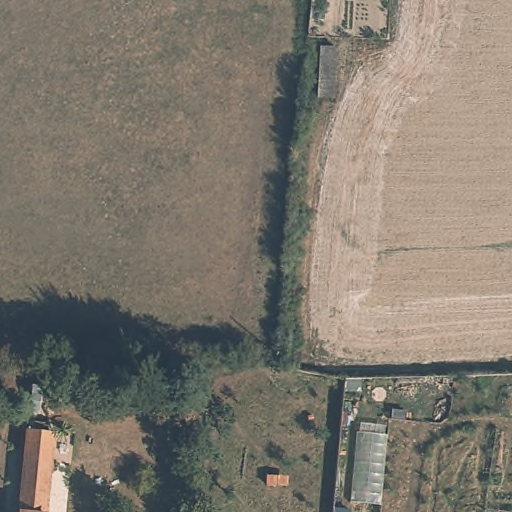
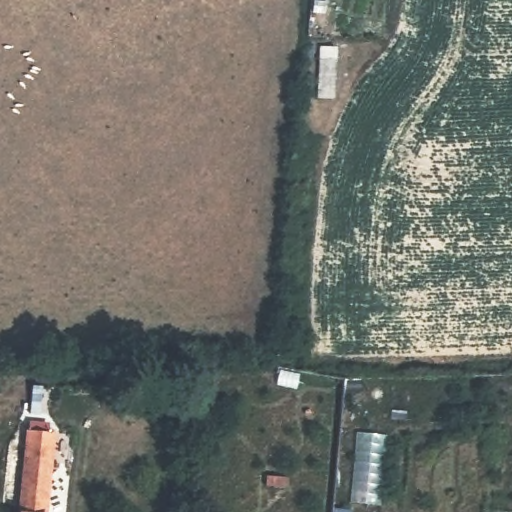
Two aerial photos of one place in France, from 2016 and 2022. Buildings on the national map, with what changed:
unchanged [(311,62),(325,63),(321,114),(307,114),(311,62)]
unchanged [(49,430),(48,440),(55,440),(49,512),(17,512),(25,429),(49,430)]

